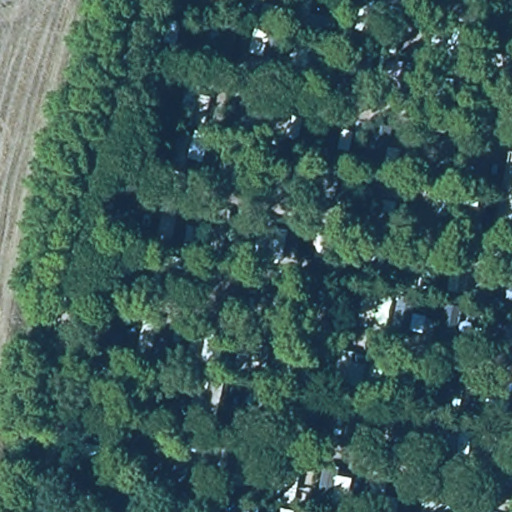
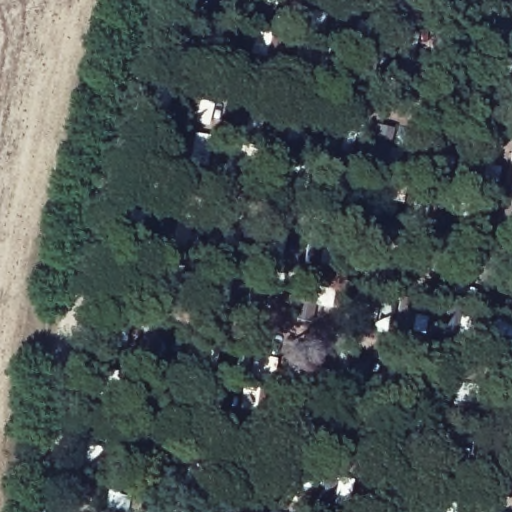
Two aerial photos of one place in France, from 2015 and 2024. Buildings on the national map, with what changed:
unchanged [(510,151),(512,152),(512,239),(493,235),(510,151)]

